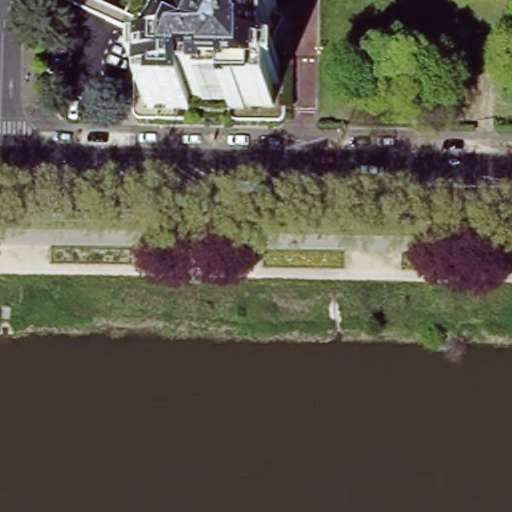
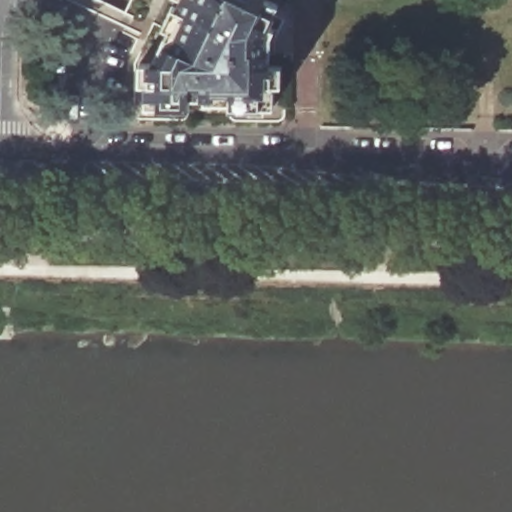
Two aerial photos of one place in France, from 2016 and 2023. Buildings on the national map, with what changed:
unchanged [(267,5),(280,12),(271,35),(275,37),(270,47),(269,75),(281,75),(282,96),(276,96),(277,116),(249,116),(249,117),(234,118),(234,112),(207,111),(207,109),(193,109),(193,117),(176,116),(176,115),(152,114),(151,96),(146,96),(146,72),(156,73),(172,39),(167,36),(177,14),(182,16),(187,6),(178,2),(179,0),(267,0),(269,1),(267,5)]

